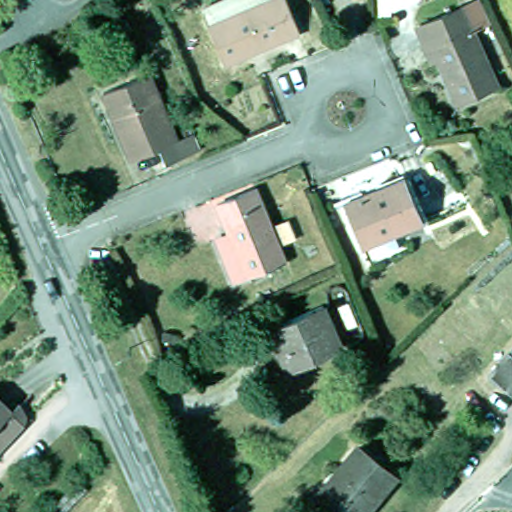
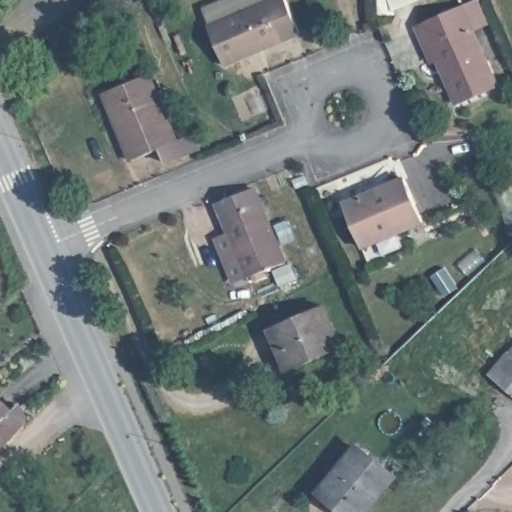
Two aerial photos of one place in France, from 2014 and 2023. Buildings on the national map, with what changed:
unchanged [(203,3),(211,0),(260,0),(211,21),(203,3)]
unchanged [(297,31),(227,60),(211,21),(260,0),(286,0),(297,31)]
unchanged [(490,83),(452,100),(434,59),(431,61),(414,24),(456,5),(490,83)]
unchanged [(191,134),(196,151),(165,161),(159,148),(129,161),(101,94),(148,74),(173,140),(191,134)]
unchanged [(346,206),(404,180),(420,219),(360,244),(346,206)]
unchanged [(212,235),(225,230),(214,202),(251,187),(279,257),(242,273),(230,278),(212,235)]
unchanged [(286,368),(269,328),(320,307),(337,346),(286,368)]
unchanged [(487,376),(502,356),(511,343),(512,344),(512,394),(487,376)]
unchanged [(0,426),(0,398),(14,411),(0,426)]
unchanged [(18,407),(28,417),(29,418),(0,450),(0,426),(14,411),(18,407)]
unchanged [(345,512),(322,493),(356,449),(392,476),(362,512),(345,512)]

